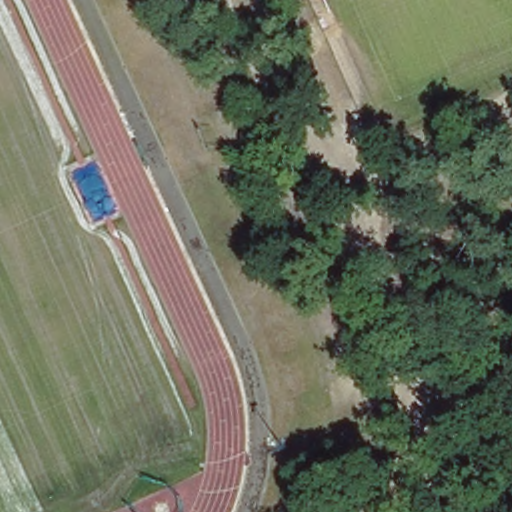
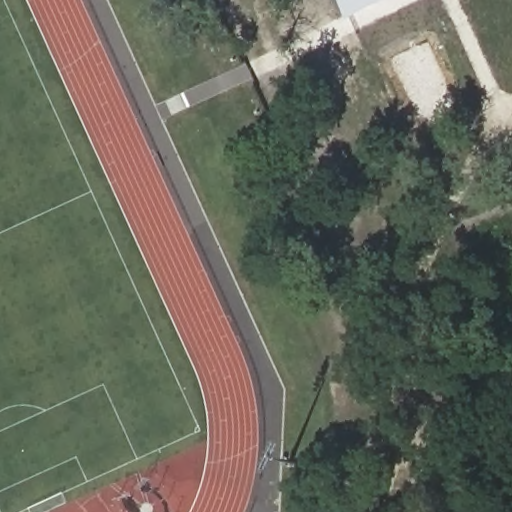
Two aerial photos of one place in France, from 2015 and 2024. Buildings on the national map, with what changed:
new [(347,19),(339,0),(389,0),(347,19)]
unchanged [(236,70),(249,103),(214,116),(200,82),(236,70)]

